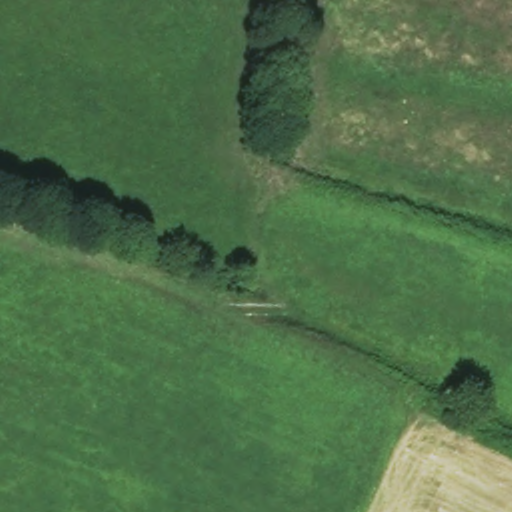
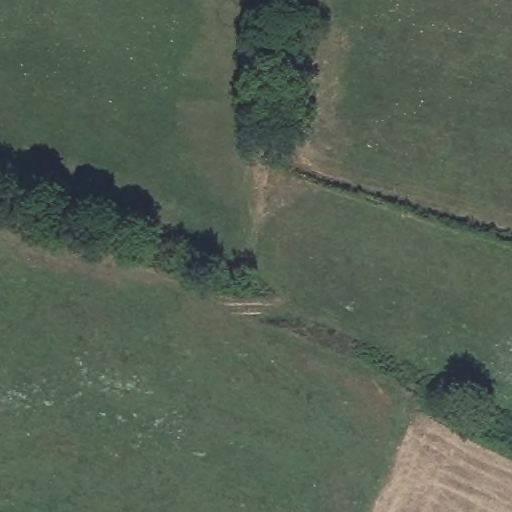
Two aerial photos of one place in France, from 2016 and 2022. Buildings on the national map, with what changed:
[]

